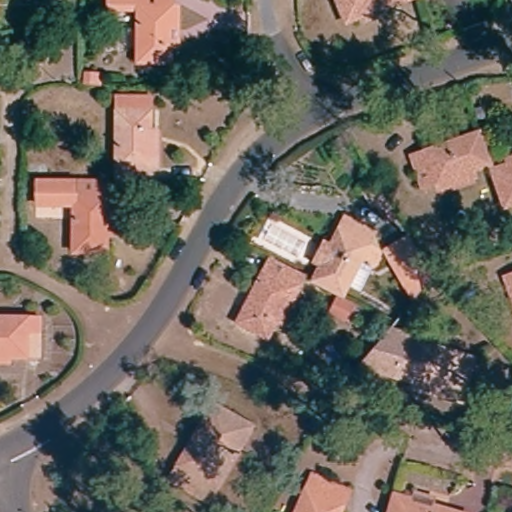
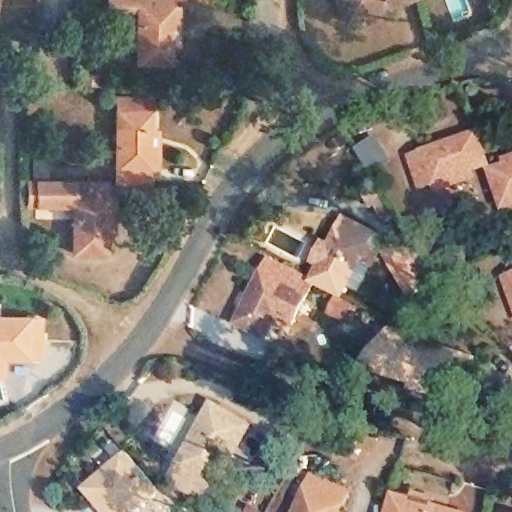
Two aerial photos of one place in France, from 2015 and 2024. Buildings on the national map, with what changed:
unchanged [(170,8),(177,8),(176,47),(169,47),(169,64),(136,64),(135,17),(106,17),(106,0),(170,0),(170,8)]
unchanged [(345,25),(336,0),(412,0),(345,25)]
unchanged [(116,100),(116,88),(148,89),(148,100),(147,185),(114,184),(116,100)]
unchanged [(482,173),(433,191),(434,195),(420,200),(407,163),(471,140),(482,173)]
unchanged [(496,217),(484,178),(500,173),(497,168),(512,163),(512,212),(496,217)]
unchanged [(105,184),(105,199),(112,199),(112,236),(105,236),(105,255),(72,255),(72,207),(35,207),(35,184),(71,184),(105,184)]
unchanged [(315,266),(326,245),(333,248),(348,220),(374,234),(342,297),(315,284),(322,269),(315,266)]
unchanged [(406,288),(390,262),(415,248),(425,266),(406,288)]
unchanged [(307,280),(274,344),(239,326),(270,262),(307,280)]
unchanged [(503,280),(512,277),(512,305),(503,280)]
unchanged [(346,304),(340,318),(325,311),(332,297),(346,304)]
unchanged [(0,322),(37,322),(38,358),(4,358),(4,365),(0,365),(0,322)]
unchanged [(423,387),(425,380),(393,371),(353,359),(367,343),(382,326),(472,352),(461,391),(453,389),(451,396),(423,387)]
unchanged [(205,406),(245,427),(207,502),(166,482),(205,406)]
new [(141,512),(104,512),(82,489),(124,452),(161,493),(141,512)]
unchanged [(345,495),(338,512),(296,512),(308,480),(345,495)]
unchanged [(439,512),(387,512),(391,499),(439,512)]

